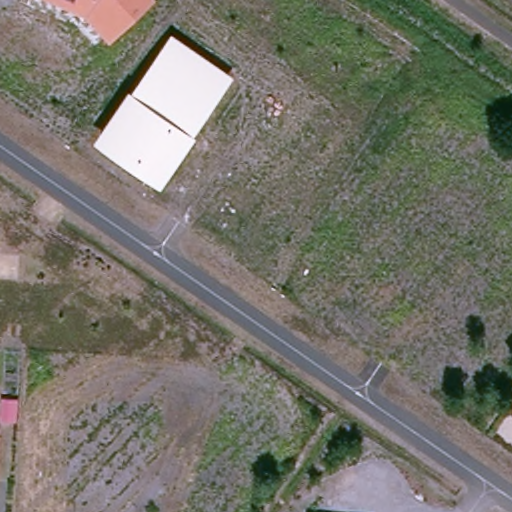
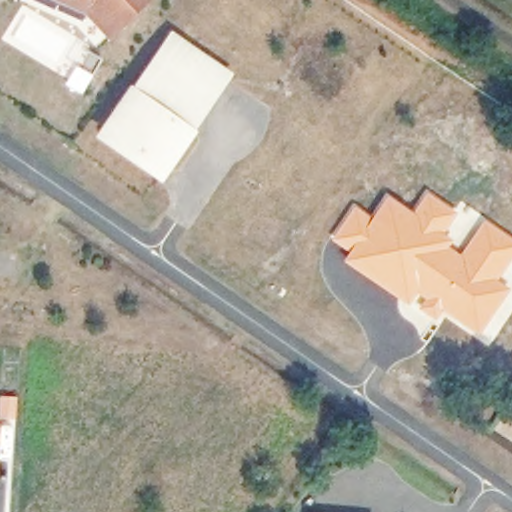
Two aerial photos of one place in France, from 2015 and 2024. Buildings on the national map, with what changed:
unchanged [(85,15),(48,0),(152,0),(110,39),(85,15)]
unchanged [(235,75),(197,134),(164,186),(95,139),(131,88),(174,34),(235,75)]
new [(330,240),(355,205),(371,216),(387,194),(411,211),(426,192),(460,214),(450,229),(452,231),(449,234),(462,248),(484,220),(512,239),(512,261),(500,279),(512,289),(478,338),(442,313),(435,323),(414,310),(420,302),(419,301),(417,298),(410,307),(341,261),(347,252),(330,240)]

